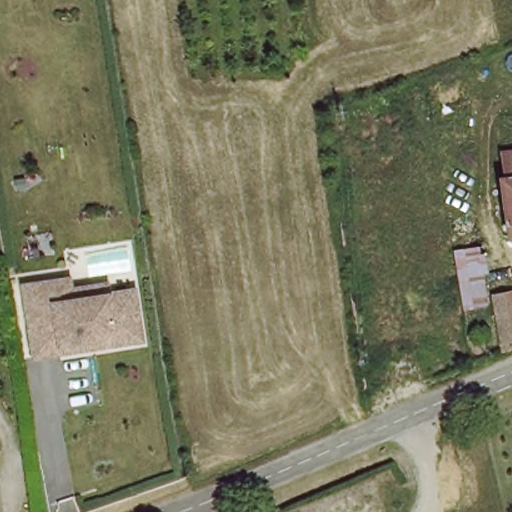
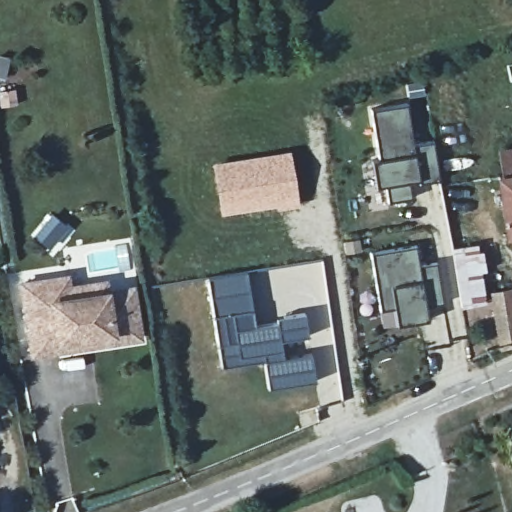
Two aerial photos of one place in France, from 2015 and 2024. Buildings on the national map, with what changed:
new [(409,104),(414,144),(435,141),(441,181),(421,185),(420,182),(411,182),(413,199),(386,203),(384,186),(376,187),(370,160),(378,158),(370,110),(409,104)]
unchanged [(500,176),(496,151),(512,149),(512,175),(500,176)]
new [(290,151),(298,205),(276,210),(276,205),(221,216),(212,163),(290,151)]
unchanged [(512,175),(512,233),(502,234),(493,177),(500,176),(512,175)]
new [(415,246),(418,266),(436,263),(442,304),(425,307),(427,321),(397,326),(394,306),(380,309),(370,255),(415,246)]
unchanged [(481,247),(491,303),(468,308),(465,285),(457,284),(456,275),(463,274),(458,249),(481,247)]
new [(246,271),(255,325),(276,322),(275,318),(304,313),(308,336),(281,341),(284,357),(311,353),(316,381),(266,389),(263,359),(220,366),(206,277),(246,271)]
unchanged [(65,277),(65,288),(100,282),(101,294),(129,288),(136,340),(115,344),(56,354),(30,359),(18,283),(65,277)]
unchanged [(508,347),(498,294),(512,292),(512,345),(508,347)]

